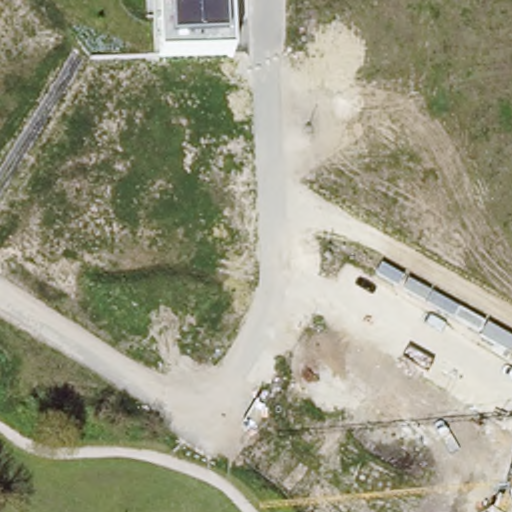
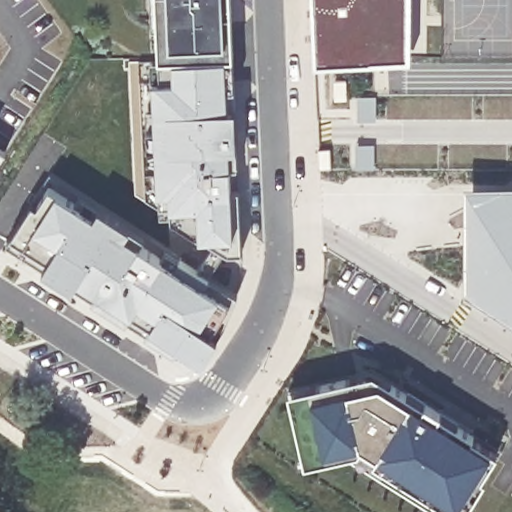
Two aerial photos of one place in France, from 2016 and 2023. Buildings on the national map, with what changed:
unchanged [(234,55),(159,56),(157,0),(232,0),(234,55)]
new [(407,55),(318,60),(315,0),(408,0),(407,55)]
new [(234,55),(234,85),(226,85),(228,105),(236,104),(238,144),(229,144),(232,189),(240,187),(241,250),(227,250),(201,234),(170,215),(168,203),(168,187),(158,187),(152,76),(160,76),(159,56),(234,55)]
new [(160,76),(152,76),(158,187),(168,187),(168,203),(170,215),(135,196),(129,59),(159,56),(160,76)]
new [(0,160),(0,149),(5,152),(0,160)]
new [(226,319),(217,335),(203,356),(195,363),(172,348),(125,320),(94,296),(97,289),(78,277),(73,282),(43,263),(8,241),(11,232),(32,199),(38,204),(51,182),(61,188),(96,210),(101,202),(133,223),(128,230),(176,262),(181,256),(211,277),(236,295),(226,319)]
new [(512,184),(512,322),(463,291),(464,183),(512,184)]
new [(291,396),(369,377),(391,391),(394,387),(410,396),(407,401),(424,412),(428,406),(444,416),(441,422),(458,432),(461,428),(477,438),(476,440),(501,456),(486,480),(489,482),(479,497),(477,495),(466,511),(446,499),(438,512),(428,512),(354,465),(310,475),(291,396)]

